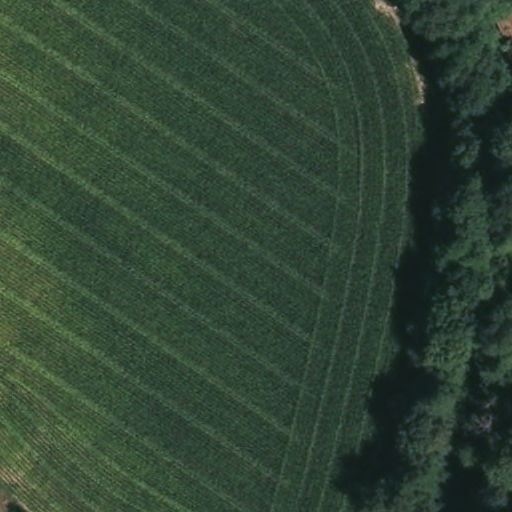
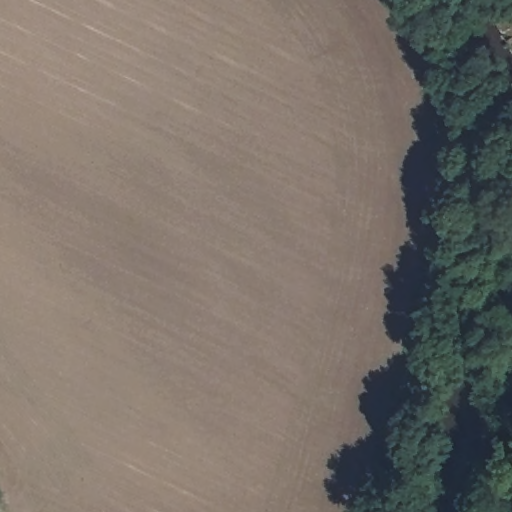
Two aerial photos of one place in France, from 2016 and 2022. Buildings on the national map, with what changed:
[]

